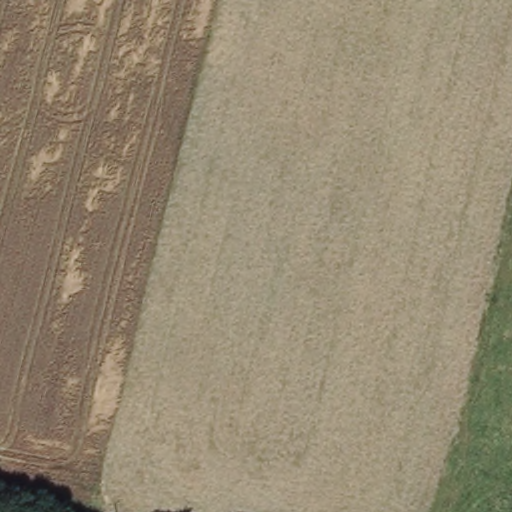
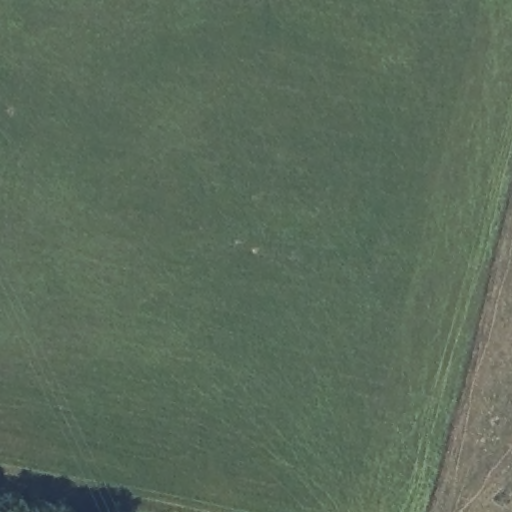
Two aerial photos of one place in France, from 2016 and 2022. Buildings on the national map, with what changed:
[]

